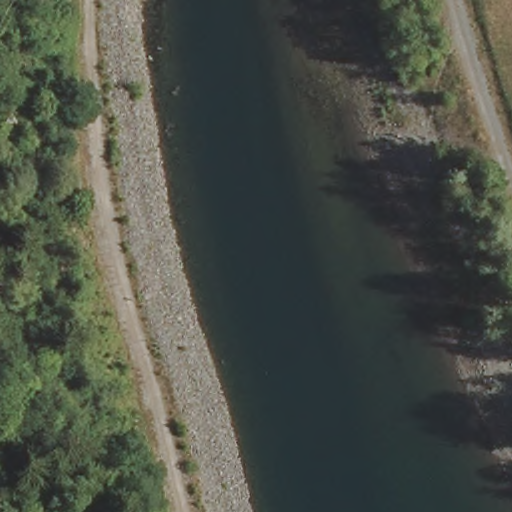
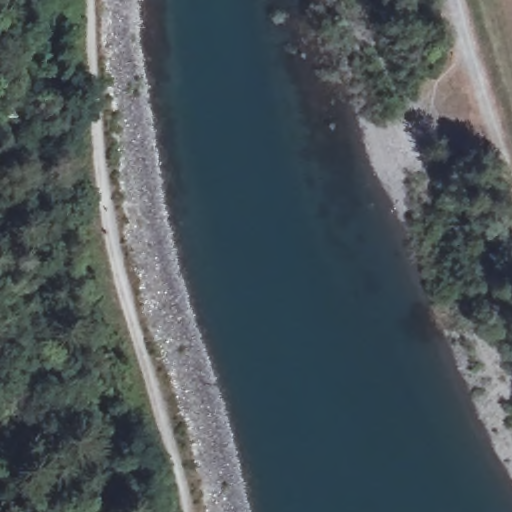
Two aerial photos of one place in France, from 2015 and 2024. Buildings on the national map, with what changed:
[]

